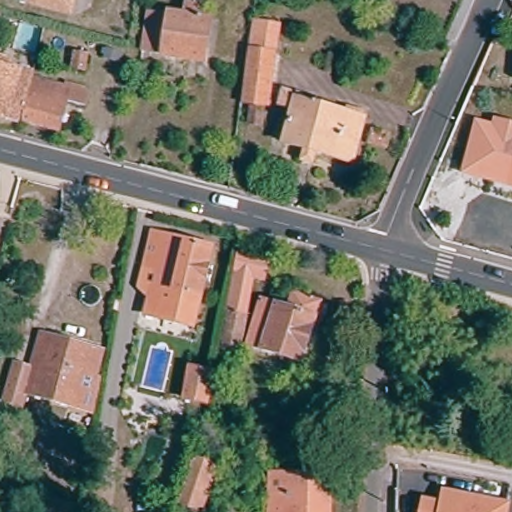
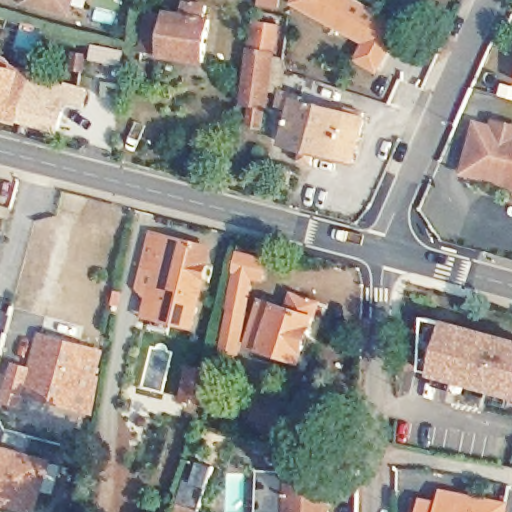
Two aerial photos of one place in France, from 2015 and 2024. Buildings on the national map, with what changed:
unchanged [(56,0),(71,0),(70,4),(56,0)]
new [(366,43),(294,3),(295,0),(362,0),(408,25),(382,75),(357,60),(366,43)]
unchanged [(151,16),(170,19),(171,15),(186,18),(188,4),(207,7),(205,21),(210,21),(205,62),(165,57),(166,53),(146,49),(151,16)]
unchanged [(239,113),(241,96),(252,13),(279,17),(269,99),(266,99),(263,116),(239,113)]
unchanged [(73,52),(90,54),(87,72),(71,69),(73,52)]
unchanged [(2,59),(0,64),(0,59),(2,59)]
unchanged [(29,79),(23,98),(29,99),(23,119),(0,112),(0,71),(29,79)]
unchanged [(66,90),(67,86),(85,91),(83,94),(86,95),(83,106),(67,103),(59,129),(23,119),(29,99),(23,98),(29,79),(66,90)]
unchanged [(295,95),(293,101),(359,119),(346,161),(281,144),(290,108),(278,104),(281,92),(295,95)]
unchanged [(475,125),(497,131),(499,119),(512,123),(512,184),(464,172),(475,125)]
demolished [(373,131),(388,134),(384,149),(370,145),(373,131)]
unchanged [(146,284),(140,283),(145,266),(153,233),(213,248),(193,327),(149,315),(139,313),(146,284)]
unchanged [(264,256),(260,274),(248,271),(234,347),(214,344),(233,249),(264,256)]
unchanged [(314,303),(296,361),(246,346),(260,303),(284,311),(290,295),(314,303)]
new [(436,372),(426,369),(430,318),(449,324),(451,319),(512,336),(512,398),(435,377),(436,372)]
unchanged [(95,408),(26,389),(23,402),(4,397),(15,360),(33,364),(43,329),(103,346),(96,371),(102,373),(95,408)]
unchanged [(211,362),(205,395),(184,391),(189,358),(211,362)]
new [(54,459),(40,512),(23,512),(3,507),(5,496),(0,495),(0,445),(54,459)]
unchanged [(212,457),(198,502),(175,494),(189,449),(212,457)]
unchanged [(266,465),(325,466),(325,509),(288,509),(288,512),(266,512),(266,465)]
unchanged [(503,512),(420,512),(424,494),(442,499),(445,486),(506,499),(503,512)]
demolished [(33,506),(37,491),(72,501),(69,512),(55,512),(33,506)]

